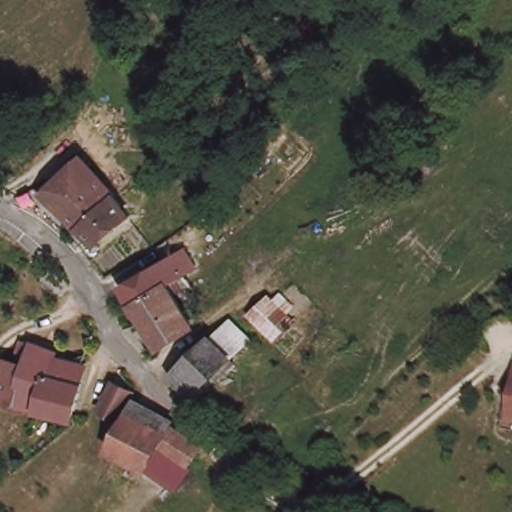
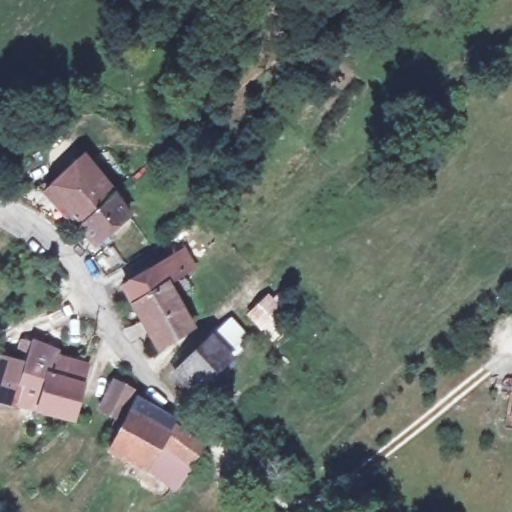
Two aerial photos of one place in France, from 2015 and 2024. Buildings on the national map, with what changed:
unchanged [(91,238),(79,225),(48,186),(83,156),(115,193),(128,207),(91,238)]
unchanged [(178,243),(194,265),(177,277),(168,284),(136,306),(122,283),(161,255),(178,243)]
unchanged [(176,328),(158,340),(136,306),(168,284),(178,300),(189,319),(176,328)]
unchanged [(247,308),(266,293),(284,313),(267,330),(247,308)]
unchanged [(251,338),(193,392),(171,366),(232,310),(251,338)]
unchanged [(30,335),(55,345),(37,404),(23,402),(9,398),(0,397),(0,364),(3,356),(21,364),(30,335)]
unchanged [(88,357),(71,412),(37,404),(55,345),(88,357)]
unchanged [(159,402),(166,410),(169,413),(151,440),(143,453),(135,464),(111,447),(105,441),(118,418),(100,402),(118,372),(135,390),(138,383),(159,402)]
unchanged [(169,413),(173,416),(186,425),(201,438),(202,439),(213,445),(198,467),(151,440),(169,413)]

